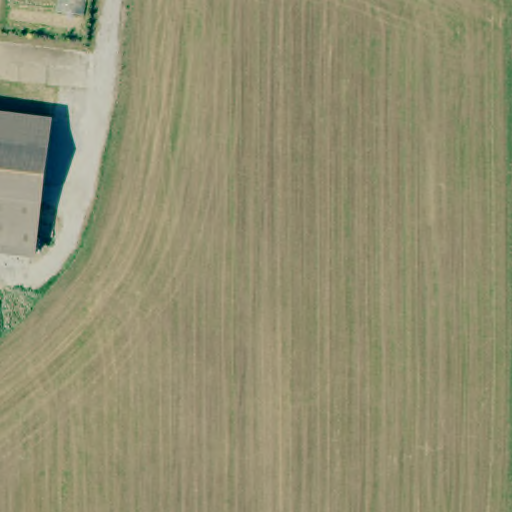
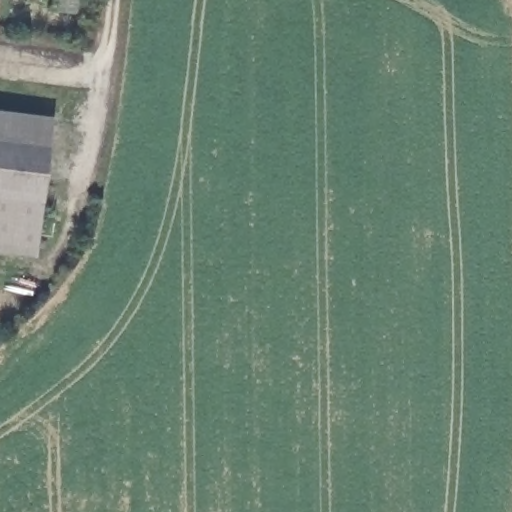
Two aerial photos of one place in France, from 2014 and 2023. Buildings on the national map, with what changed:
unchanged [(35,252),(0,248),(0,112),(51,118),(35,252)]

